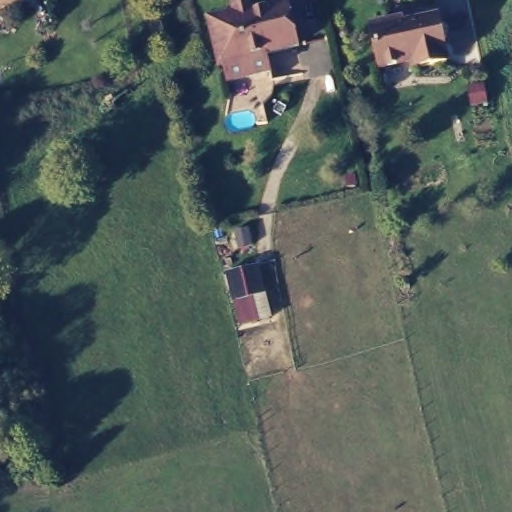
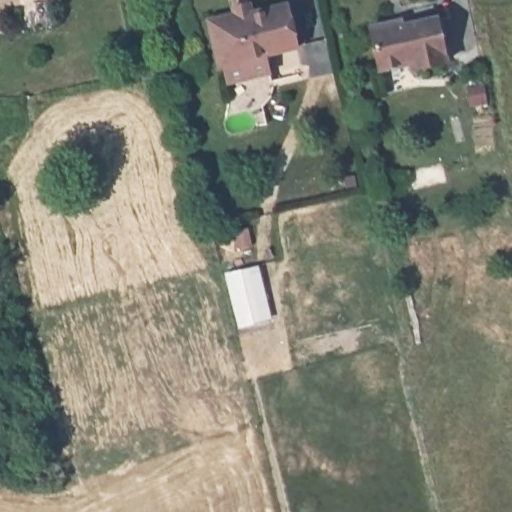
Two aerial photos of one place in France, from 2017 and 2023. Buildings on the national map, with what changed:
unchanged [(268,44),(272,64),(226,73),(213,12),(237,7),(235,0),(251,0),(252,4),(272,0),(290,0),(299,38),(268,44)]
unchanged [(364,21),(381,18),(389,17),(396,15),(397,20),(433,13),(443,57),(408,64),(406,57),(391,60),(374,63),(364,21)]

